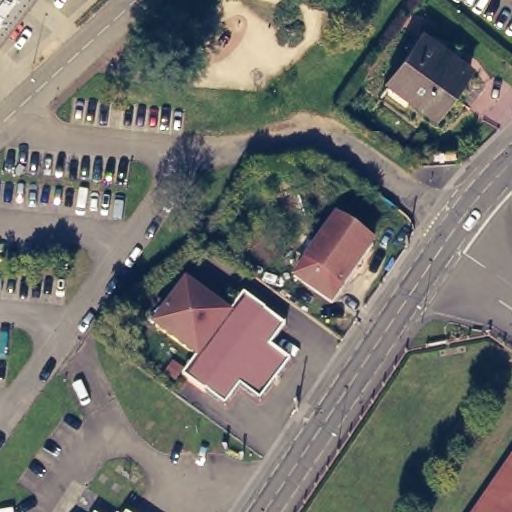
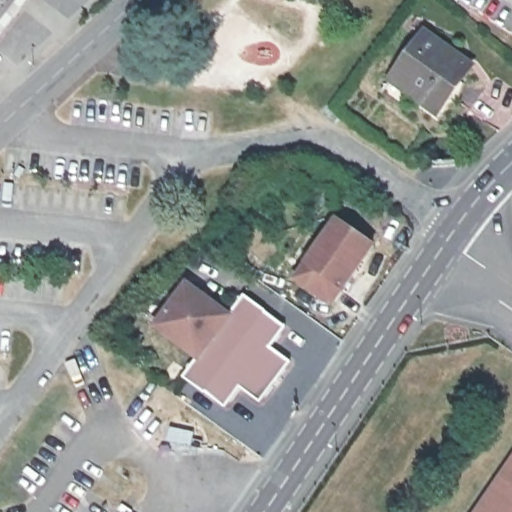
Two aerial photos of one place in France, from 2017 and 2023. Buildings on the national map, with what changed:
unchanged [(0,34),(0,0),(26,0),(0,34)]
unchanged [(437,108),(391,75),(425,28),(471,61),(437,108)]
unchanged [(331,303),(296,277),(338,220),(374,245),(331,303)]
unchanged [(291,360),(260,402),(240,386),(225,406),(204,391),(204,392),(182,376),(197,356),(155,325),(186,284),(228,315),(243,294),(265,310),(264,310),(286,326),(271,346),(291,360)]
unchanged [(512,512),(474,512),(512,456),(512,512)]
unchanged [(56,512),(78,477),(132,512),(56,512)]

